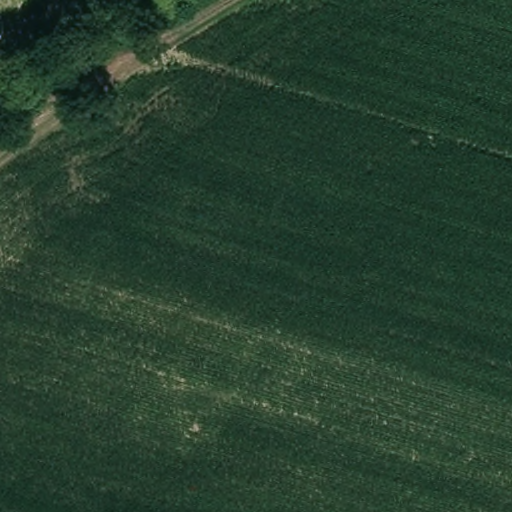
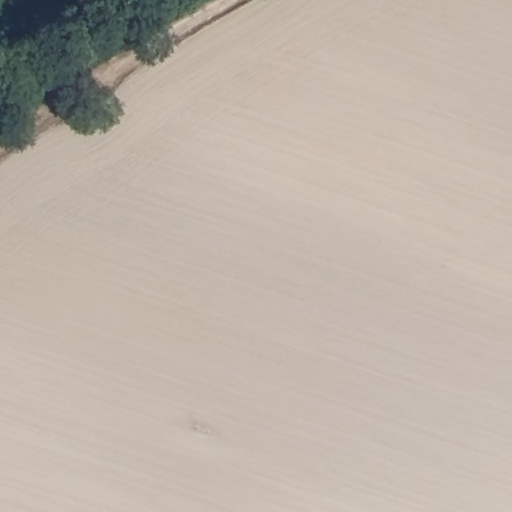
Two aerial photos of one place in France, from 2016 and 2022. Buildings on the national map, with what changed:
[]

